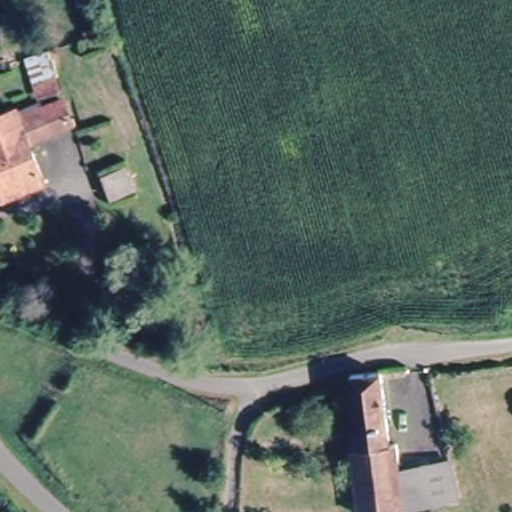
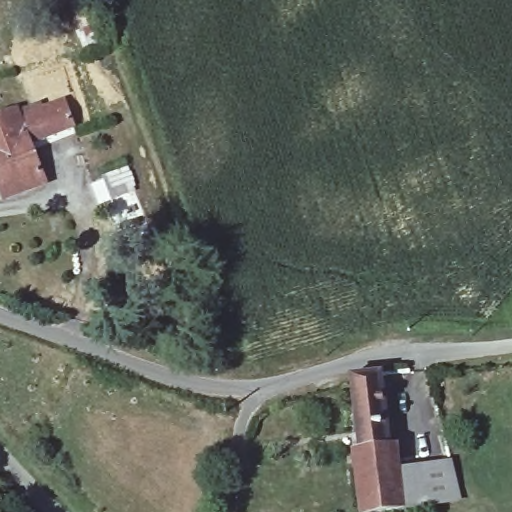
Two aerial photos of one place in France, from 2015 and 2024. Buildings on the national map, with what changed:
unchanged [(1,196),(0,192),(0,111),(11,107),(15,115),(49,101),(64,95),(79,121),(61,129),(26,142),(42,178),(1,196)]
unchanged [(129,186),(106,197),(98,176),(120,166),(129,186)]
unchanged [(392,442),(399,442),(403,463),(408,506),(365,512),(354,447),(361,445),(352,372),(384,368),(392,442)]
unchanged [(403,463),(431,457),(432,464),(438,499),(408,506),(403,463)]
unchanged [(468,493),(438,499),(432,464),(457,458),(468,493)]

